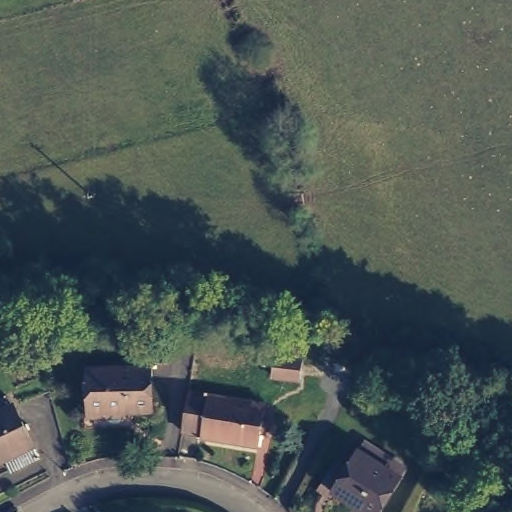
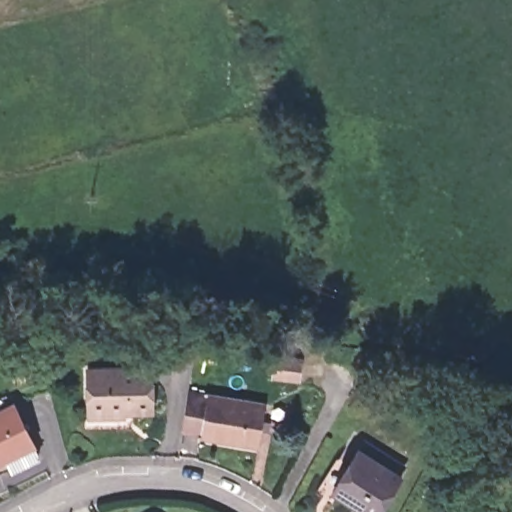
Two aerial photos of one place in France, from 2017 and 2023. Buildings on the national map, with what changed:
unchanged [(91,414),(91,408),(91,365),(155,365),(155,409),(127,408),(126,415),(91,414)]
unchanged [(315,393),(291,390),(293,372),(316,373),(315,393)]
unchanged [(180,385),(266,398),(260,440),(195,430),(195,426),(175,423),(180,385)]
unchanged [(33,456),(8,467),(2,455),(0,456),(0,407),(9,403),(33,456)]
unchanged [(377,512),(366,512),(336,495),(330,492),(342,471),(354,450),(357,452),(362,442),(401,462),(395,472),(398,473),(377,512)]

